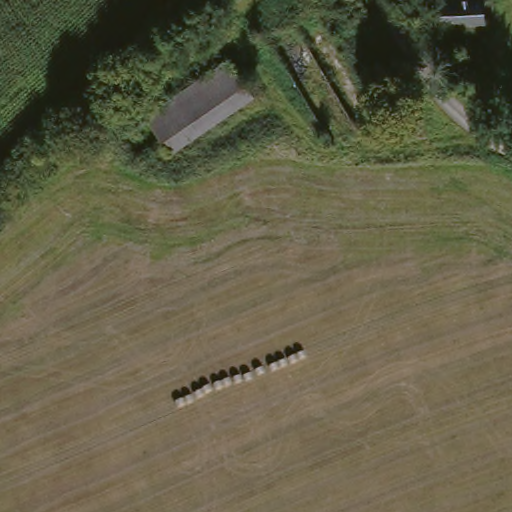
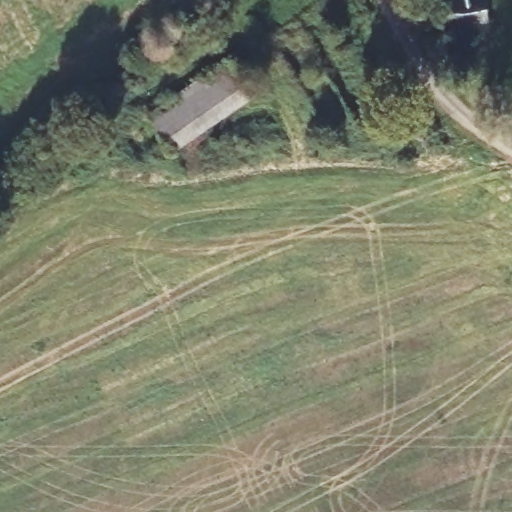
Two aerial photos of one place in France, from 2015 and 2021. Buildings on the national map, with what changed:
unchanged [(367,11),(347,22),(334,0),(360,0),(367,11)]
unchanged [(431,2),(475,1),(476,25),(432,27),(430,7),(428,2),(431,2)]
unchanged [(225,60),(248,97),(166,151),(142,115),(225,60)]

